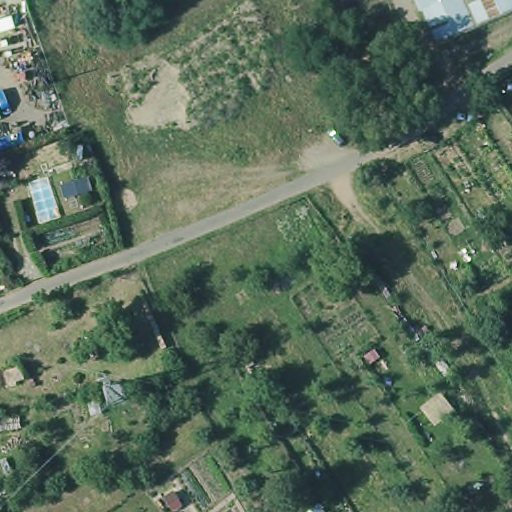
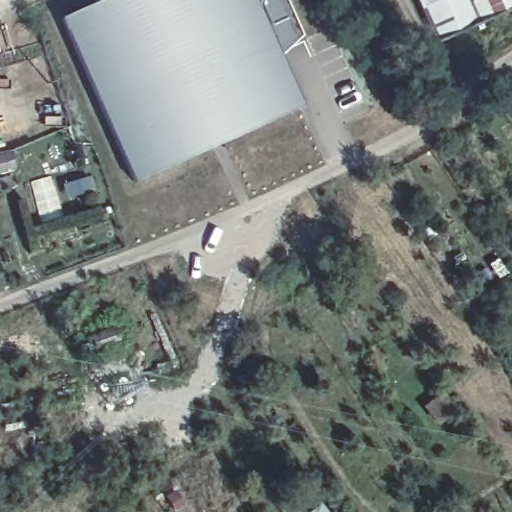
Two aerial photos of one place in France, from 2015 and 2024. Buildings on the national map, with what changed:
new [(133,184),(59,20),(104,0),(254,0),(280,57),(302,107),(133,184)]
new [(301,36),(280,57),(254,0),(285,0),(301,36)]
unchanged [(439,35),(424,0),(512,0),(512,3),(439,35)]
unchanged [(0,175),(0,160),(12,156),(16,171),(0,175)]
unchanged [(95,193),(69,200),(64,182),(91,174),(95,193)]
unchanged [(0,191),(0,180),(1,180),(4,190),(0,191)]

